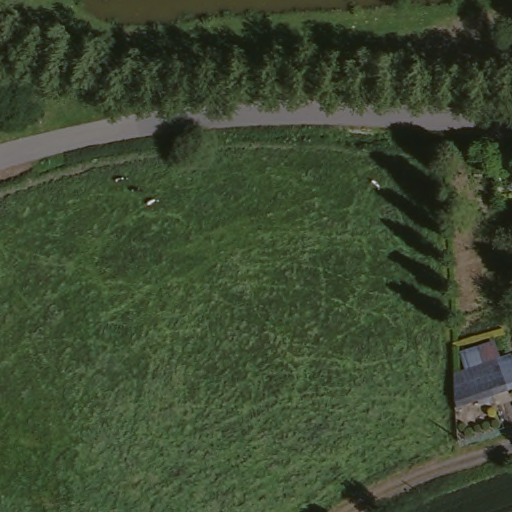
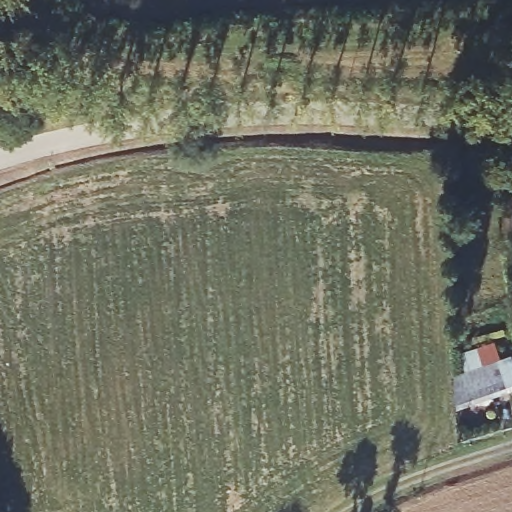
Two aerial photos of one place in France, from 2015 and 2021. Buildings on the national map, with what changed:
unchanged [(512,366),(512,391),(466,401),(465,376),(512,366)]

